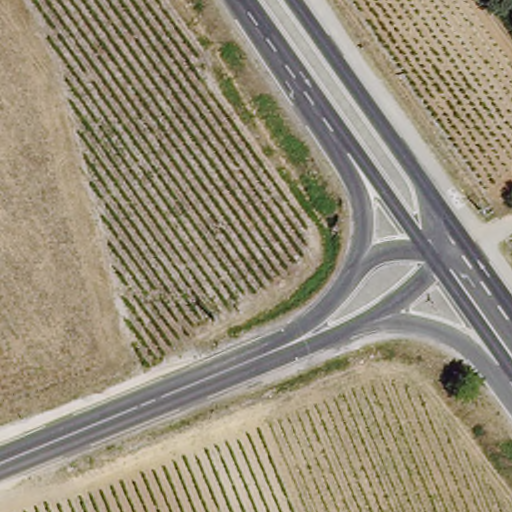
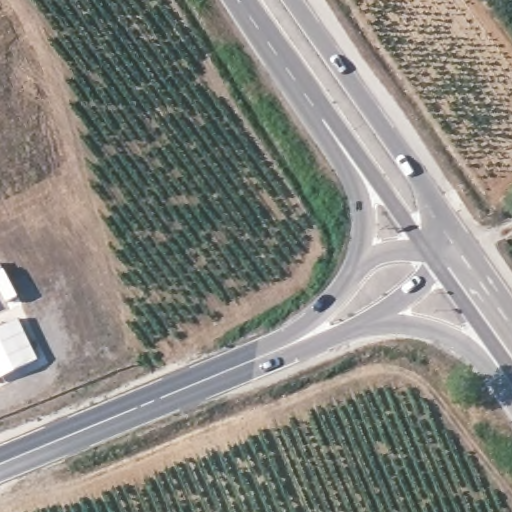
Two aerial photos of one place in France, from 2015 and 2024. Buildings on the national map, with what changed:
new [(38,360),(0,379),(0,328),(18,320),(38,360)]

